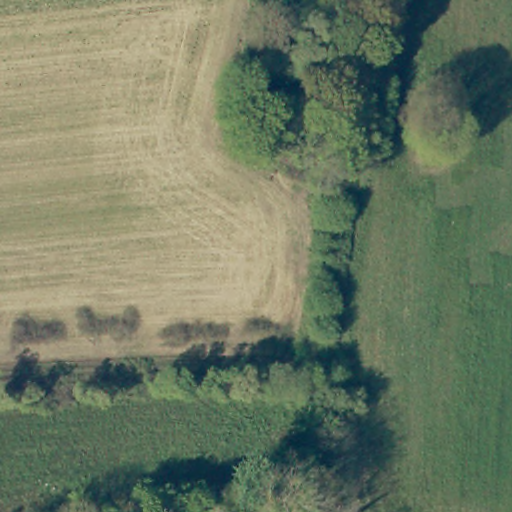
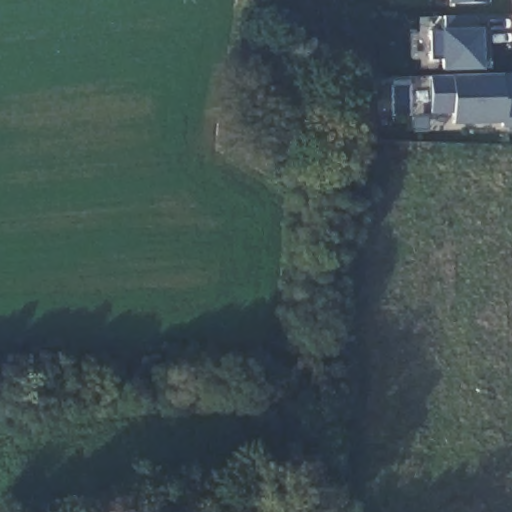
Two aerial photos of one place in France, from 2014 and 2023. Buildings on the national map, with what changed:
new [(449,0),(488,0),(488,3),(449,5),(449,0)]
new [(440,60),(429,59),(430,32),(439,32),(438,29),(444,29),(443,16),(474,16),(474,29),(480,29),(480,32),(488,32),(489,67),(480,69),(440,70),(440,60)]
new [(504,129),(504,122),(454,124),(454,115),(432,114),(428,76),(503,74),(512,74),(512,129),(504,129)]

